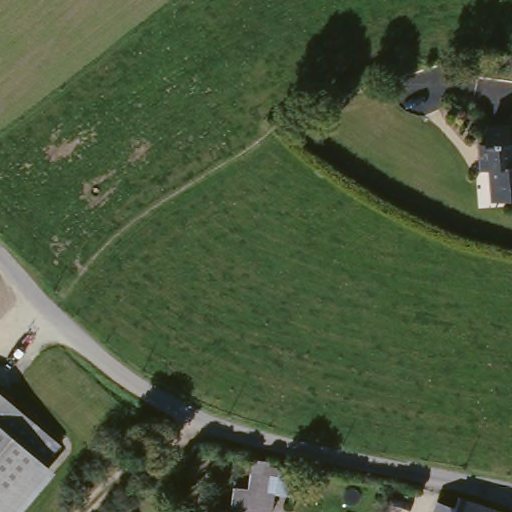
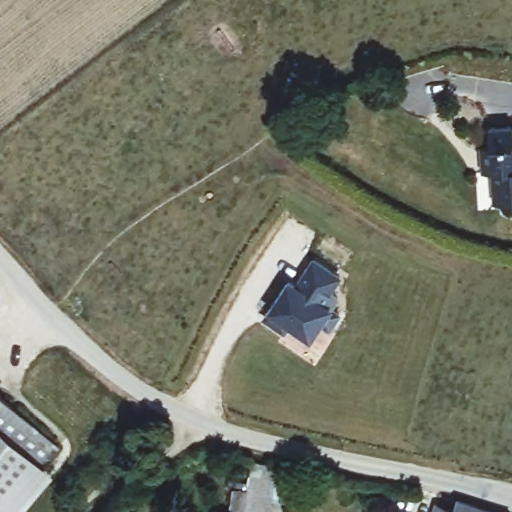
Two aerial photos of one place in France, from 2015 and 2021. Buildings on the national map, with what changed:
unchanged [(496,194),(495,176),(485,176),(485,151),(493,150),(492,131),(512,130),(512,205),(496,205),(496,194)]
new [(287,286),(295,290),(312,265),(337,282),(327,297),(336,303),(329,313),(337,319),(328,334),(320,328),(309,342),(287,328),(282,336),(262,323),(287,286)]
unchanged [(12,445),(0,434),(0,398),(61,451),(44,472),(12,445)]
unchanged [(0,458),(0,434),(12,445),(0,458)]
unchanged [(44,472),(54,480),(26,512),(0,512),(0,458),(12,445),(44,472)]
unchanged [(248,471),(272,474),(274,464),(291,466),(288,492),(271,490),(268,512),(253,512),(243,511),(248,471)]
unchanged [(452,510),(456,500),(458,501),(491,512),(432,512),(435,503),(452,510)]

